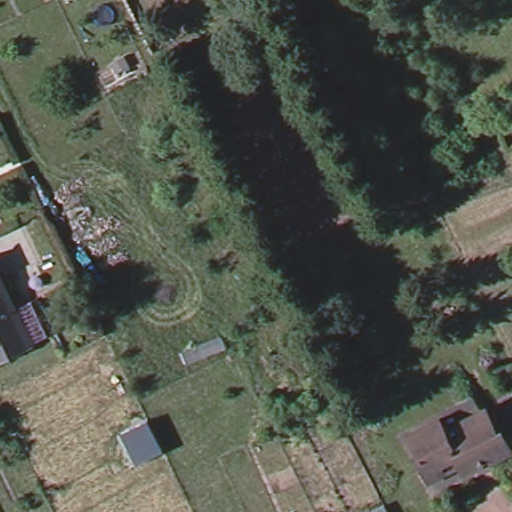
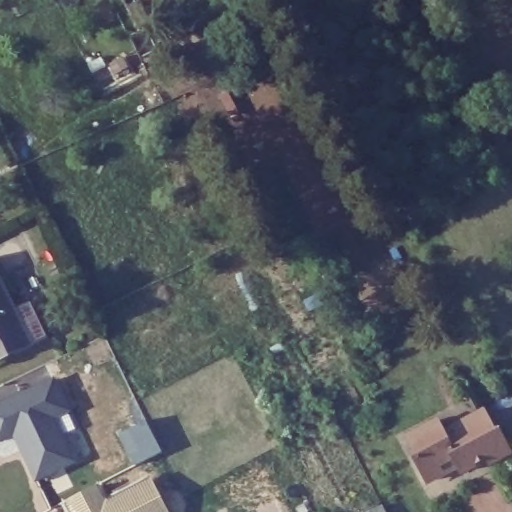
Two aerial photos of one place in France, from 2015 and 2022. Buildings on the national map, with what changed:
unchanged [(6,306),(10,313),(28,305),(45,339),(27,348),(0,361),(0,292),(6,306)]
new [(72,412),(58,418),(77,462),(36,482),(14,437),(0,443),(0,404),(56,376),(72,412)]
unchanged [(510,451),(489,462),(487,458),(478,462),(458,423),(482,411),(494,435),(501,432),(510,451)]
unchanged [(416,454),(423,450),(413,432),(439,419),(444,430),(458,423),(478,462),(463,470),(459,464),(429,479),(416,454)]
new [(163,451),(136,466),(119,434),(148,420),(163,451)]
new [(103,501),(150,478),(168,512),(68,512),(63,501),(95,485),(103,501)]
unchanged [(392,512),(372,512),(388,504),(392,512)]

